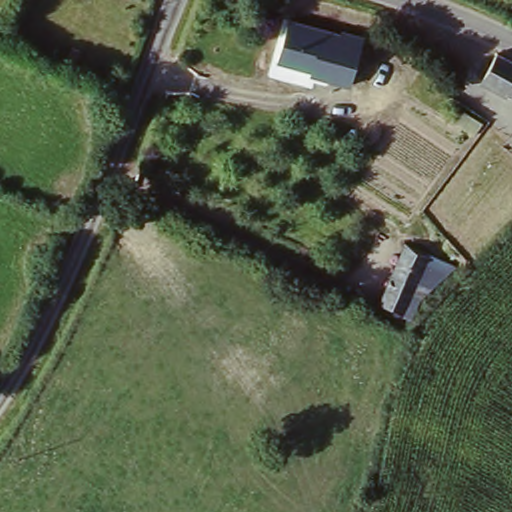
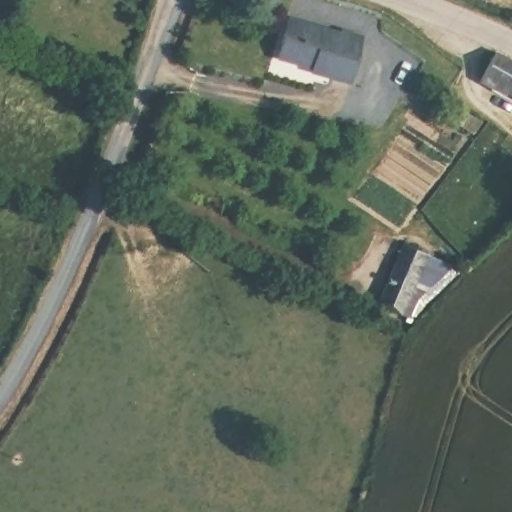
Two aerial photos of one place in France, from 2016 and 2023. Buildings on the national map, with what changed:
unchanged [(288,17),(339,34),(341,30),(364,38),(348,86),(307,73),(308,70),(275,59),(288,17)]
unchanged [(495,59),(512,67),(512,102),(481,84),(495,59)]
unchanged [(429,261),(403,319),(379,307),(403,250),(429,261)]

